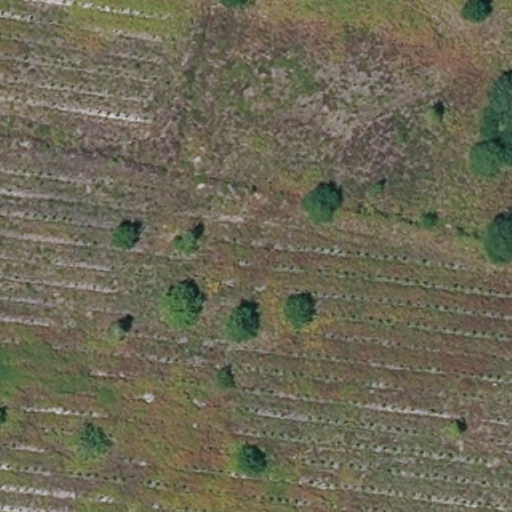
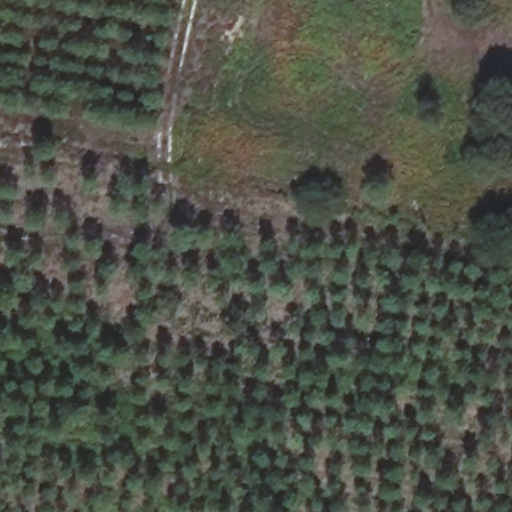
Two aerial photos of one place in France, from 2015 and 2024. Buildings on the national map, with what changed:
[]

